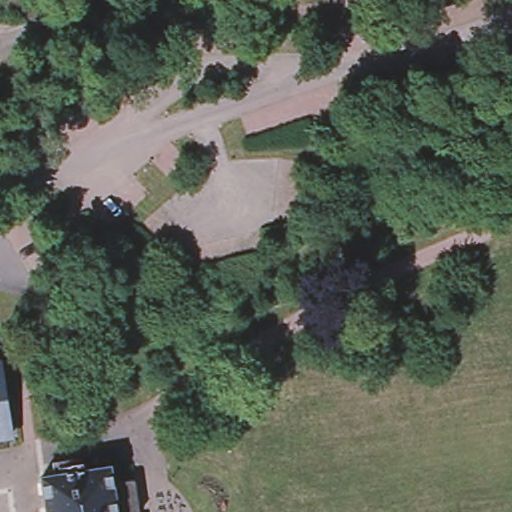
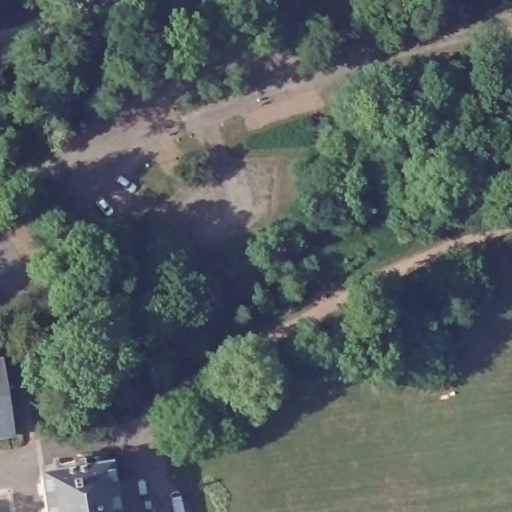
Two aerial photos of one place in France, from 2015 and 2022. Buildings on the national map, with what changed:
unchanged [(0,438),(0,379),(7,421),(9,436),(0,438)]
unchanged [(110,483),(114,512),(44,512),(39,477),(108,467),(110,483)]
unchanged [(132,479),(137,512),(114,512),(110,483),(132,479)]

